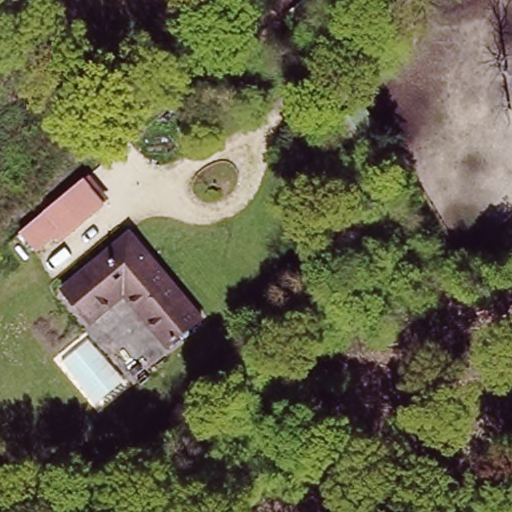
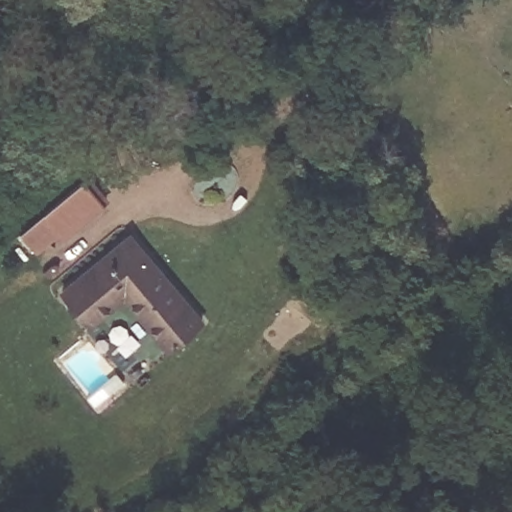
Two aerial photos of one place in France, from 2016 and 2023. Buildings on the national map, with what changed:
unchanged [(16,232),(78,177),(107,211),(57,249),(53,243),(35,260),(16,232)]
unchanged [(122,306),(91,329),(61,290),(133,235),(211,325),(163,357),(122,306)]

